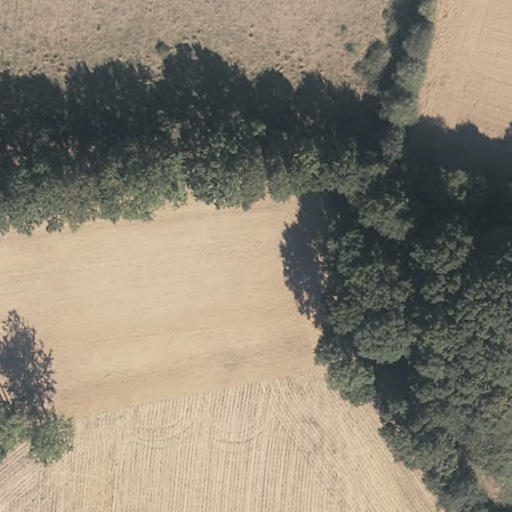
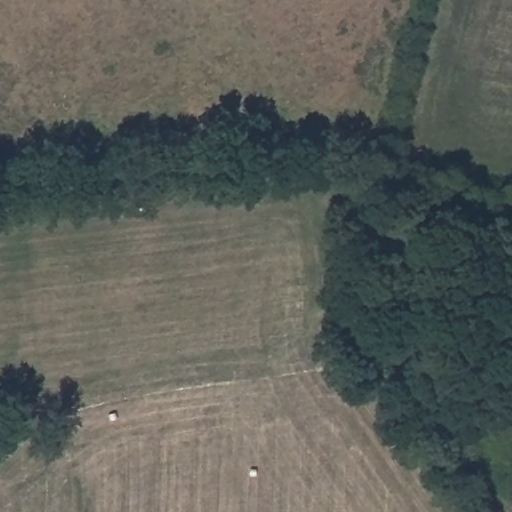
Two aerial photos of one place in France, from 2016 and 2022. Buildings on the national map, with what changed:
[]

